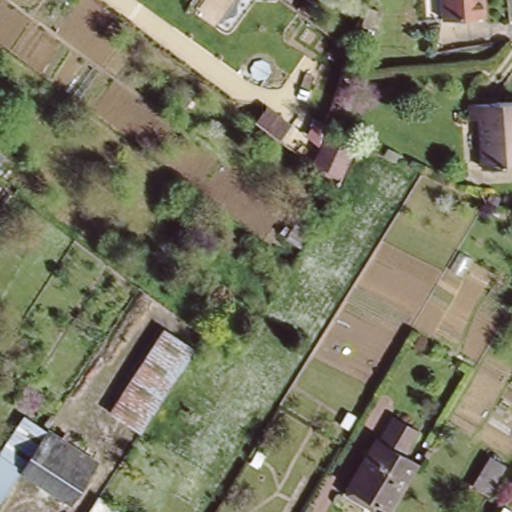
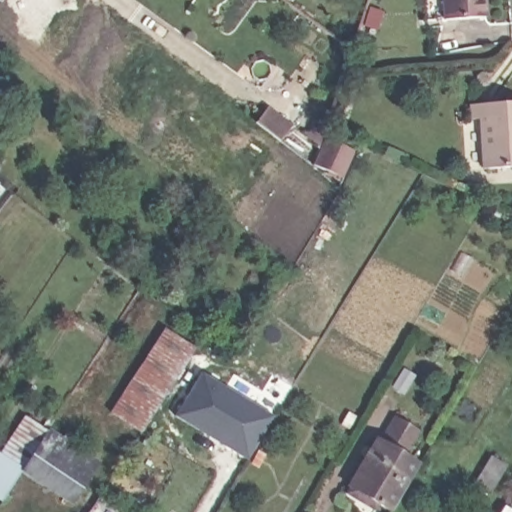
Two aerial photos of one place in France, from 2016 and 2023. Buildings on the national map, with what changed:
unchanged [(439,0),(480,0),(479,19),(438,17),(439,0)]
unchanged [(338,7),(375,33),(367,54),(332,27),(338,7)]
unchanged [(470,102),(512,104),(512,168),(480,167),(480,116),(469,116),(470,102)]
unchanged [(348,153),(337,180),(306,168),(317,140),(348,153)]
unchanged [(162,328),(193,348),(137,433),(107,413),(162,328)]
new [(178,414),(205,372),(226,386),(275,417),(248,459),(228,446),(203,430),(178,414)]
unchanged [(374,431),(377,434),(390,412),(420,430),(407,451),(422,460),(391,511),(377,503),(373,509),(343,492),(347,485),(343,483),(374,431)]
unchanged [(0,459),(0,450),(22,416),(45,431),(97,463),(70,505),(19,471),(0,504),(0,459)]
unchanged [(483,454),(500,463),(481,494),(465,485),(483,454)]
unchanged [(507,512),(500,512),(502,509),(507,512)]

